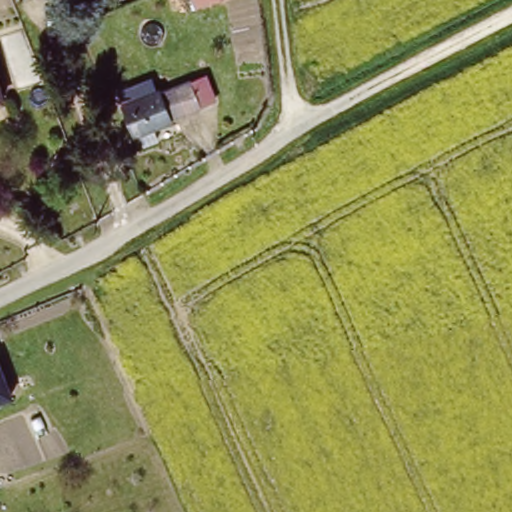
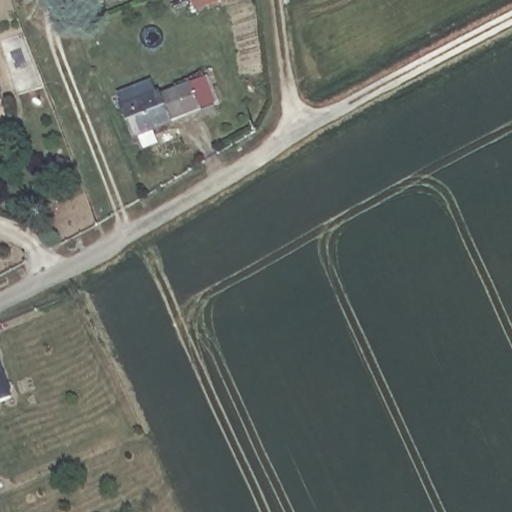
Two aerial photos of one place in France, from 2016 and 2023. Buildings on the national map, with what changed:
unchanged [(195,11),(191,0),(222,0),(195,11)]
unchanged [(160,92),(162,99),(192,87),(201,107),(169,123),(171,127),(137,141),(124,107),(160,92)]
unchanged [(12,398),(0,403),(0,368),(12,398)]

